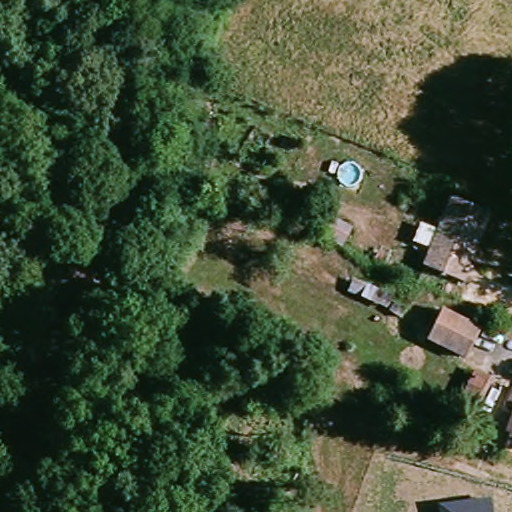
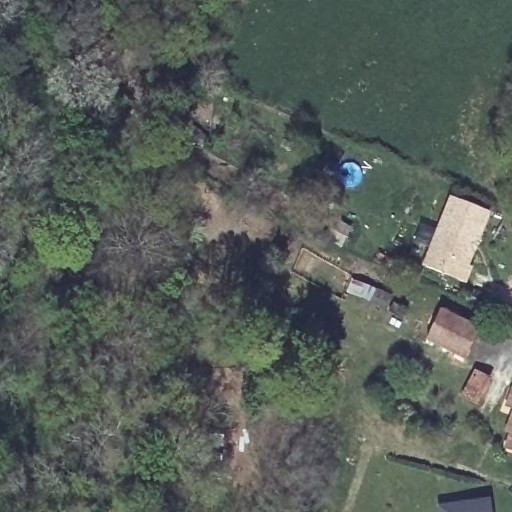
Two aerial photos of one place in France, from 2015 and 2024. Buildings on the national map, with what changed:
unchanged [(455,195),(492,210),(470,262),(473,264),(466,279),(427,262),(455,195)]
unchanged [(474,329),(461,357),(425,340),(438,312),(474,329)]
unchanged [(462,394),(473,370),(485,375),(472,399),(462,394)]
unchanged [(512,392),(512,411),(507,409),(512,392)]
unchanged [(512,441),(512,439),(512,450),(508,449),(512,441)]
unchanged [(493,512),(439,512),(438,505),(491,497),(493,512)]

